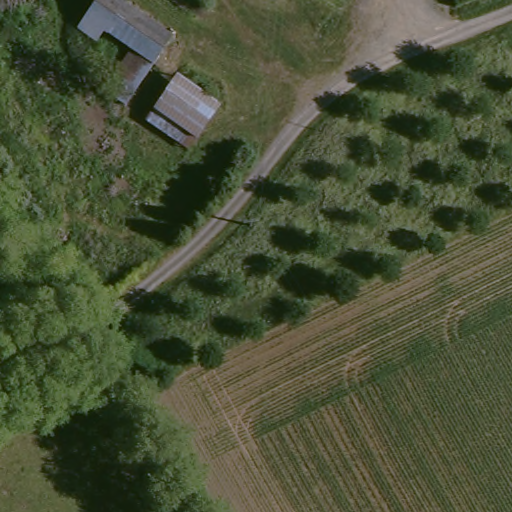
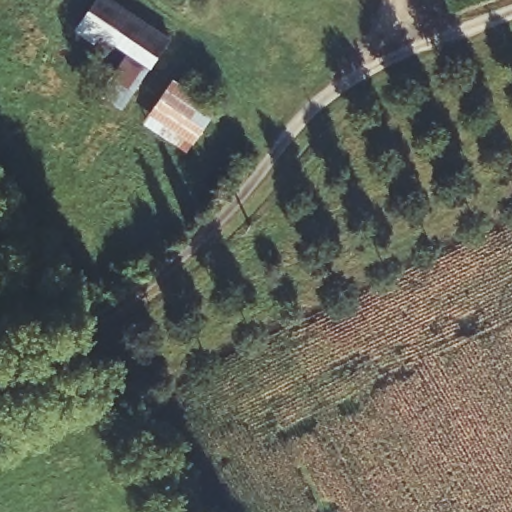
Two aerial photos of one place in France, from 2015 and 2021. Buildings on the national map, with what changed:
unchanged [(169,40),(152,65),(134,93),(124,105),(114,98),(100,89),(127,50),(114,40),(101,32),(91,44),(74,32),(74,30),(96,0),(108,0),(169,40)]
unchanged [(174,80),(217,110),(189,151),(146,121),(155,107),(134,93),(152,65),(174,80)]

